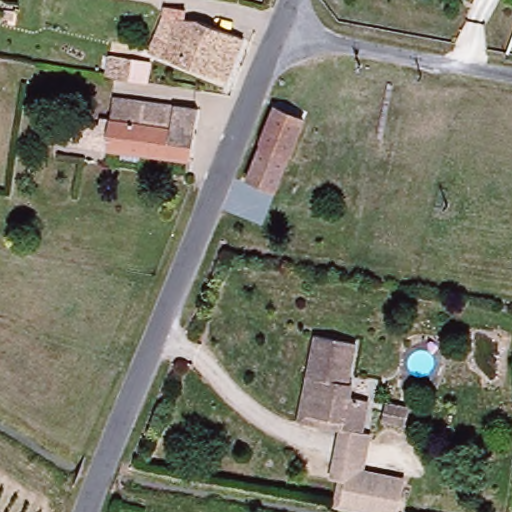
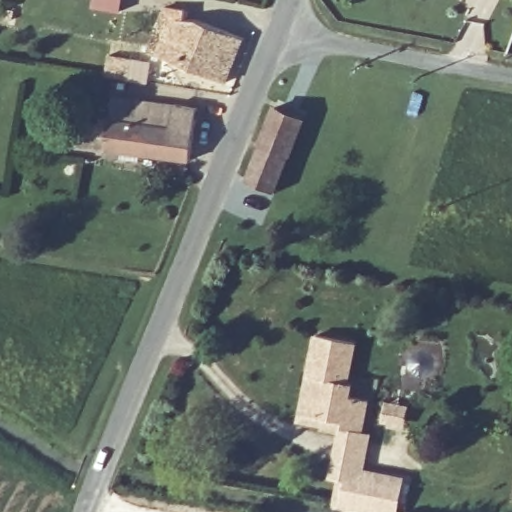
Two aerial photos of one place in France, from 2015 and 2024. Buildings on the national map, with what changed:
new [(91,9),(93,0),(120,0),(119,13),(100,10),(91,9)]
unchanged [(242,41),(224,81),(144,46),(160,0),(162,0),(177,3),(175,10),(242,41)]
unchanged [(12,14),(10,24),(0,23),(1,12),(12,14)]
unchanged [(102,78),(105,53),(134,58),(131,82),(102,78)]
unchanged [(75,146),(75,135),(87,136),(89,120),(110,123),(115,96),(195,109),(187,159),(75,146)]
unchanged [(299,120),(270,189),(242,178),(270,107),(299,120)]
unchanged [(358,476),(344,474),(331,471),(338,431),(295,424),(303,378),(311,335),(353,342),(345,383),(350,385),(347,398),(366,403),(359,435),(365,436),(358,476)]
unchanged [(394,407),(390,422),(373,418),(376,403),(394,407)]
unchanged [(338,510),(338,505),(344,474),(358,476),(401,483),(396,512),(347,512),(338,510)]

